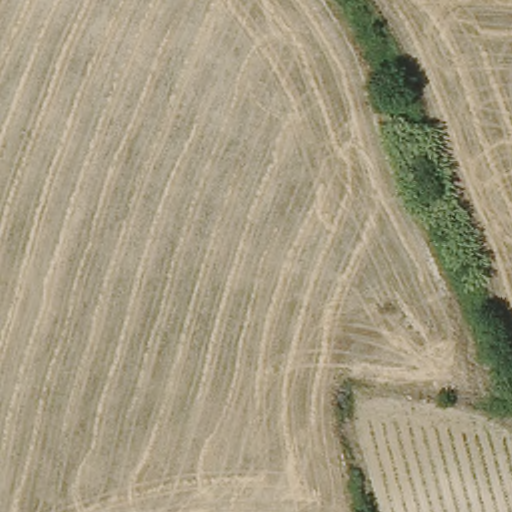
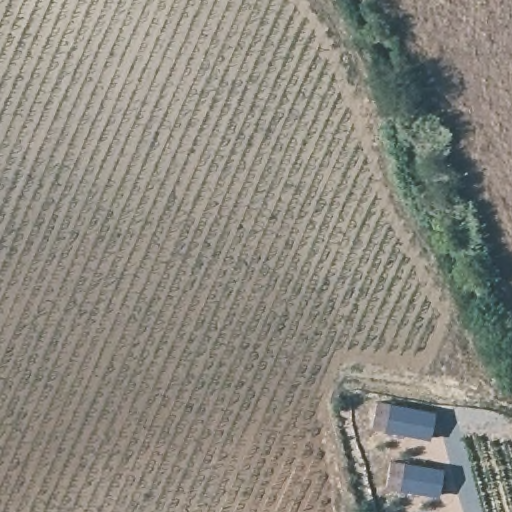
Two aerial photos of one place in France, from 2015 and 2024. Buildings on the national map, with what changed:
new [(434,410),(429,438),(370,427),(375,400),(434,410)]
new [(442,467),(438,496),(384,487),(389,459),(442,467)]

